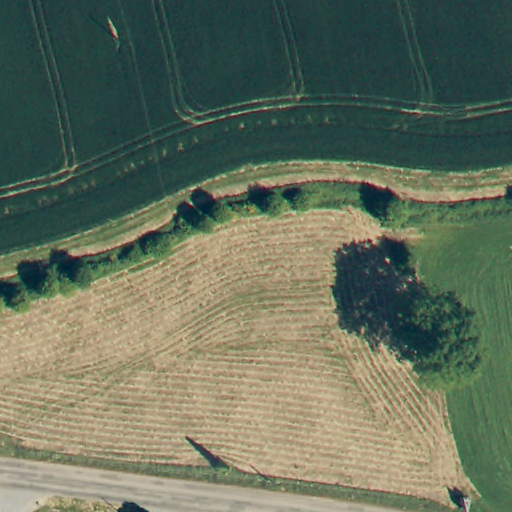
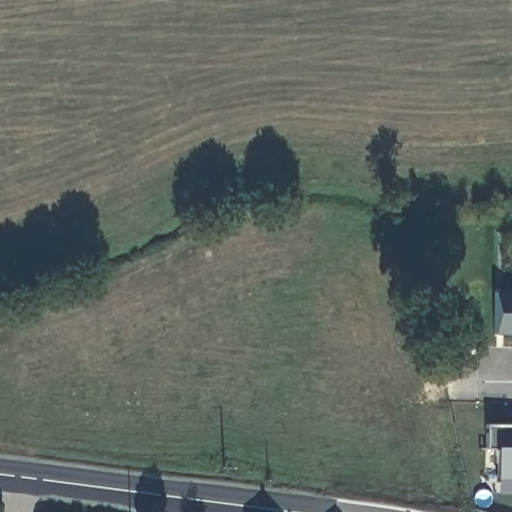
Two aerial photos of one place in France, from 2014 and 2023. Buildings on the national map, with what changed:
new [(493,334),(495,290),(512,291),(512,334),(493,334)]
new [(500,478),(494,478),(494,448),(486,448),(486,425),(512,425),(512,478),(500,478)]

